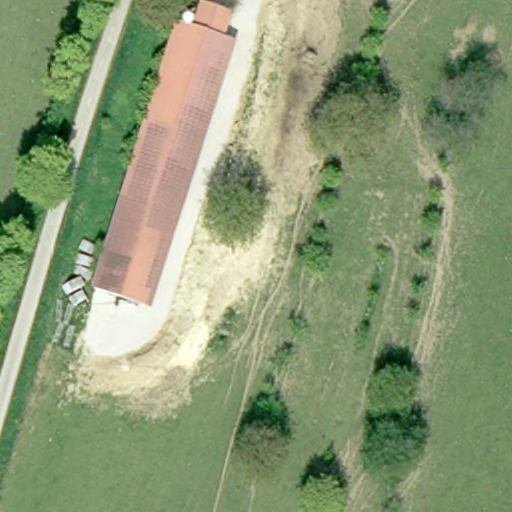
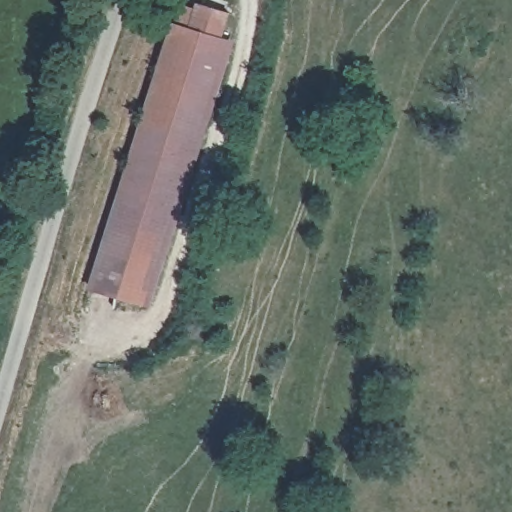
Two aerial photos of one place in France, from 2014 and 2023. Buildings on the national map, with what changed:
unchanged [(182,15),(197,21),(204,0),(215,0),(235,6),(227,31),(143,300),(95,284),(182,15)]
unchanged [(240,36),(157,304),(143,300),(227,31),(240,36)]

